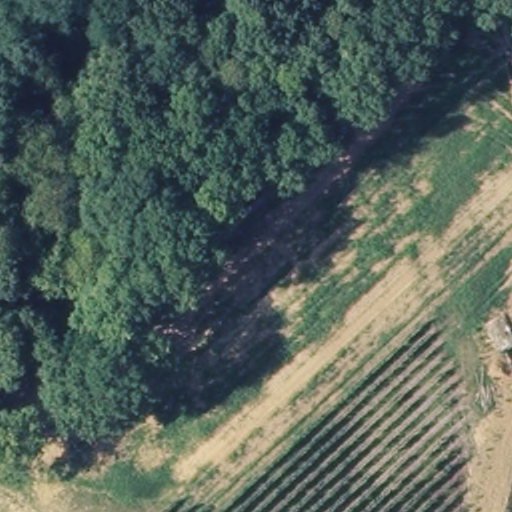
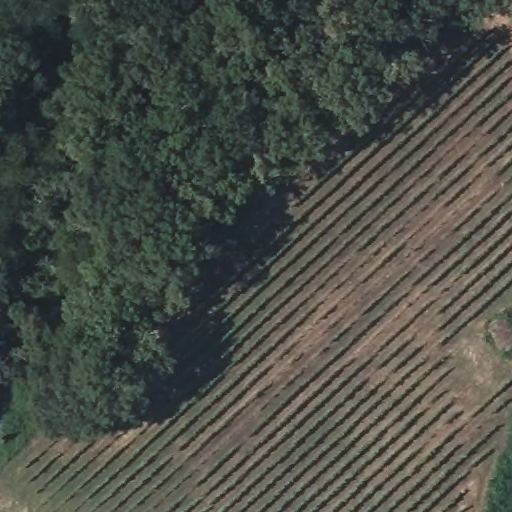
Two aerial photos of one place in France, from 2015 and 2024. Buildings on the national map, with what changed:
[]

